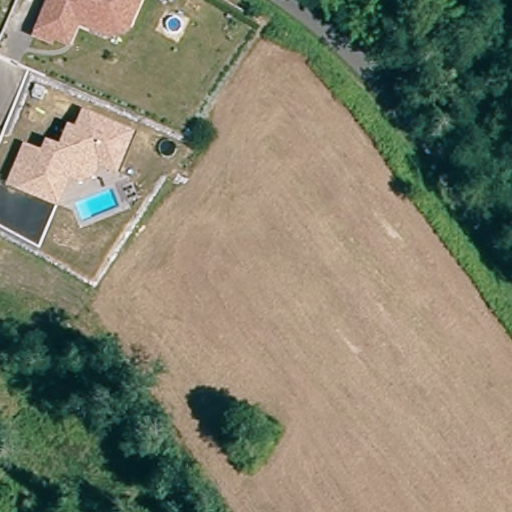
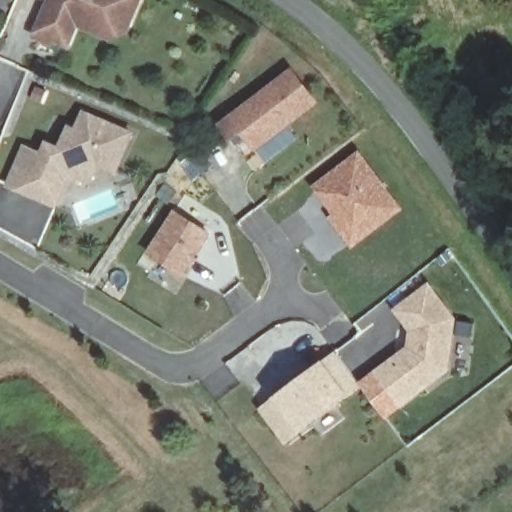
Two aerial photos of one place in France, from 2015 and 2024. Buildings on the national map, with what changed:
unchanged [(93,30),(75,24),(71,31),(74,35),(69,44),(54,38),(51,41),(36,35),(50,0),(140,0),(131,24),(127,31),(112,38),(93,30)]
new [(322,104),(256,153),(243,135),(231,143),(218,125),(294,69),(322,104)]
unchanged [(32,194),(13,186),(28,148),(46,155),(51,144),(63,149),(71,128),(79,130),(86,113),(135,132),(119,170),(93,160),(75,169),(71,176),(70,182),(61,205),(32,194)]
new [(330,218),(333,215),(311,188),(360,150),(405,210),(352,249),(330,218)]
new [(214,234),(186,277),(146,255),(175,212),(214,234)]
new [(430,284),(458,321),(451,373),(402,407),(374,372),(408,346),(409,330),(394,310),(430,284)]
new [(362,389),(351,397),(302,434),(290,443),(263,409),(275,399),(326,361),(337,353),(362,389)]

